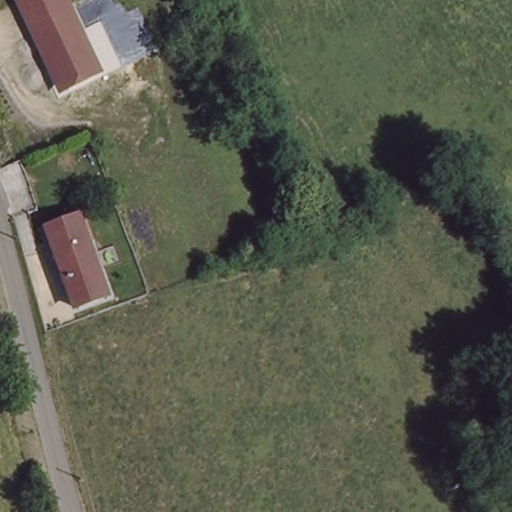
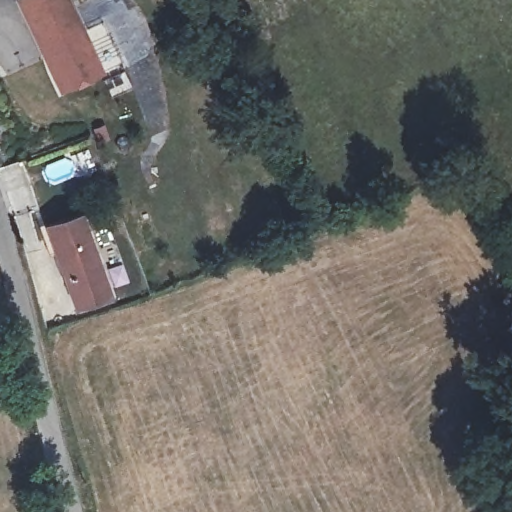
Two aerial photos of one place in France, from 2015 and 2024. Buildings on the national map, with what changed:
unchanged [(78,76),(62,45),(57,48),(31,0),(85,0),(115,57),(78,76)]
unchanged [(111,296),(77,310),(43,237),(76,220),(111,296)]

